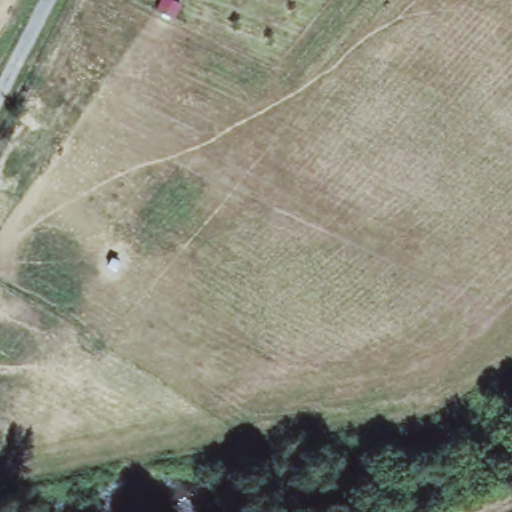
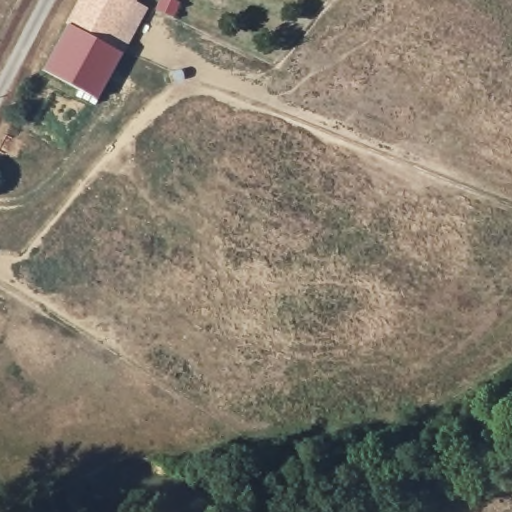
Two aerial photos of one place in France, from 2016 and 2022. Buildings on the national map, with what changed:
new [(148,7),(127,48),(110,41),(126,49),(102,98),(48,71),(83,0),(132,0),(148,7)]

